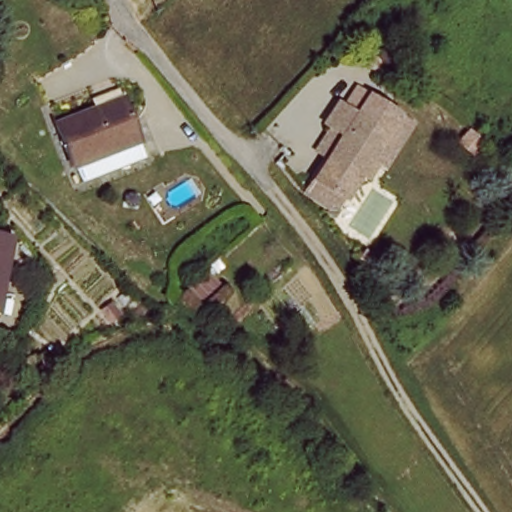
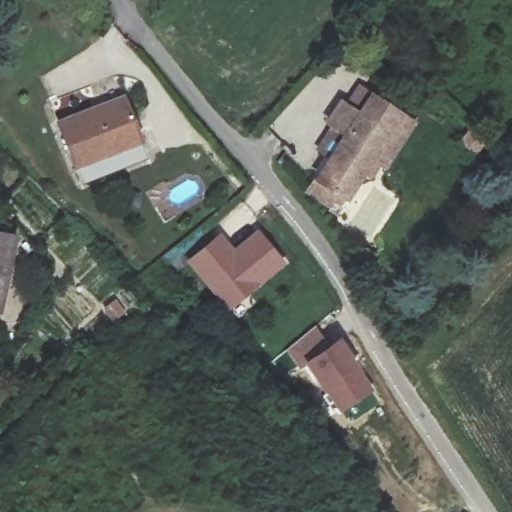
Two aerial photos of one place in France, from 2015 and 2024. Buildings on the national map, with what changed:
unchanged [(75,168),(58,124),(101,107),(121,98),(126,110),(140,144),(75,168)]
unchanged [(314,176),(323,163),(366,99),(393,124),(354,183),(344,198),(314,176)]
new [(223,233),(236,250),(261,230),(288,264),(231,313),(186,262),(223,233)]
unchanged [(0,302),(0,232),(15,236),(0,302)]
new [(318,326),(332,347),(344,340),(376,391),(342,413),(309,367),(301,373),(286,351),(318,326)]

